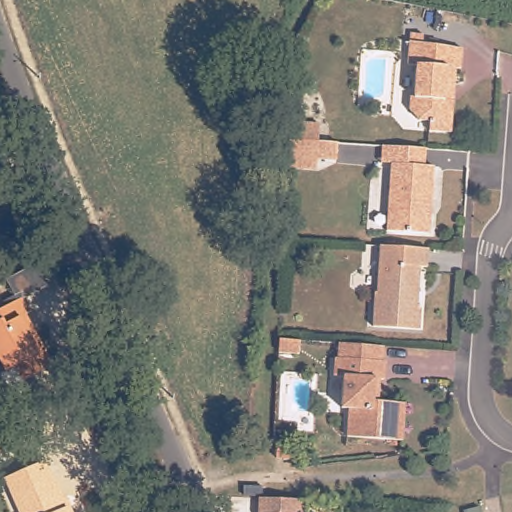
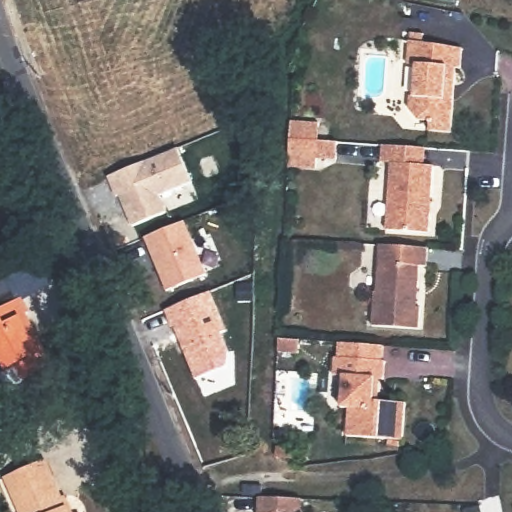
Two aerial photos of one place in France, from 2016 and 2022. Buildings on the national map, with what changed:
unchanged [(448,136),(426,134),(427,124),(416,124),(407,113),(408,100),(412,101),(414,69),(405,68),(408,36),(421,38),(420,46),(459,51),(458,72),(453,71),(452,88),(451,104),(448,136)]
unchanged [(288,156),(289,138),(290,120),(318,122),(317,140),(316,157),(288,156)]
new [(177,151),(191,185),(158,198),(165,215),(132,229),(119,198),(116,199),(107,180),(177,151)]
unchanged [(429,237),(386,234),(391,167),(433,170),(431,202),(430,218),(429,237)]
new [(184,224),(206,278),(166,294),(144,241),(184,224)]
unchanged [(419,312),(418,333),(371,330),(374,296),(376,296),(379,249),(402,250),(427,252),(426,271),(419,270),(417,291),(416,312),(419,312)]
unchanged [(28,308),(25,310),(38,334),(52,360),(23,375),(17,363),(7,368),(0,355),(0,305),(20,294),(28,308)]
new [(209,295),(225,334),(220,336),(228,355),(225,370),(196,383),(174,329),(171,330),(164,313),(209,295)]
unchanged [(299,343),(298,357),(278,356),(278,342),(299,343)]
unchanged [(342,346),(343,346),(387,349),(386,364),(389,364),(388,382),(384,382),(382,404),(406,406),(403,443),(351,439),(353,411),(345,411),(347,380),(338,379),(339,361),(341,361),(342,346)]
unchanged [(296,452),(295,462),(277,461),(278,450),(296,452)]
unchanged [(6,474),(43,457),(45,459),(69,512),(23,512),(6,474)]
unchanged [(243,488),(261,489),(261,499),(242,498),(243,488)]
unchanged [(259,500),(270,501),(300,502),(301,510),(301,512),(259,512),(259,500)]

